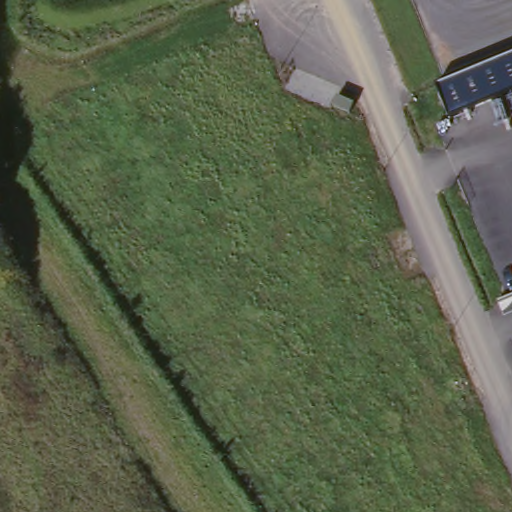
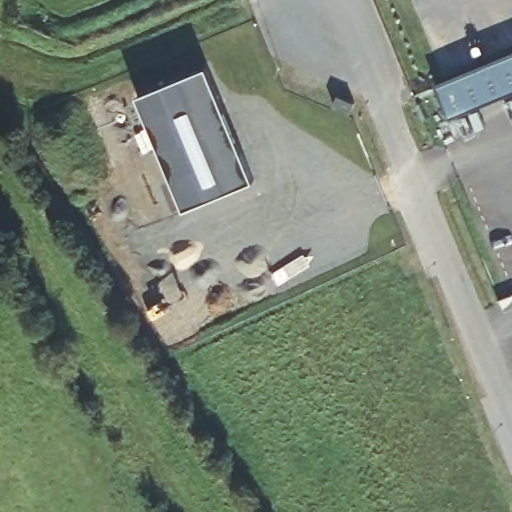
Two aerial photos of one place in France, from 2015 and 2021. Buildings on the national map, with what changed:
unchanged [(451,119),(439,84),(512,54),(512,92),(451,119)]
new [(208,69),(254,182),(180,212),(134,100),(208,69)]

